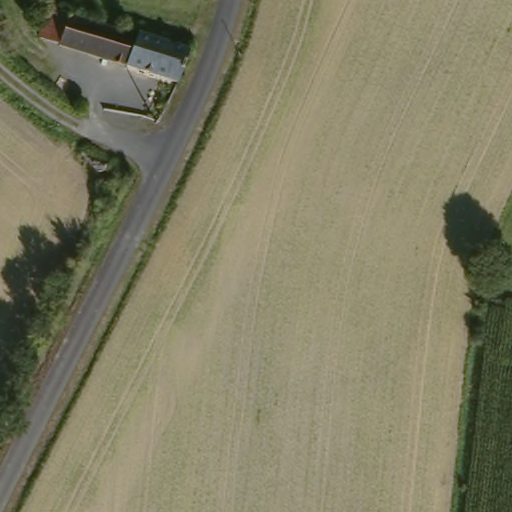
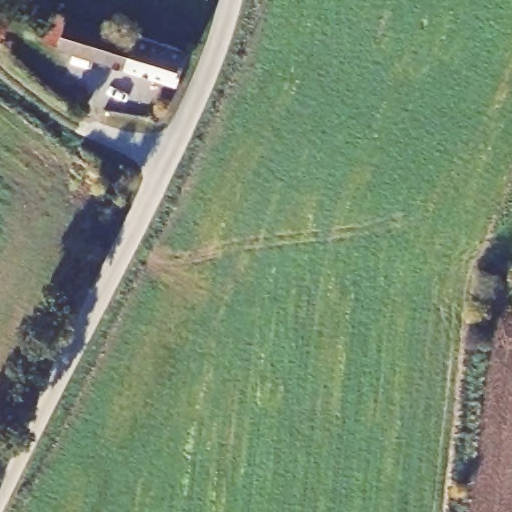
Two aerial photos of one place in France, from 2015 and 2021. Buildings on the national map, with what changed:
unchanged [(60,42),(41,37),(48,12),(68,17),(69,14),(135,35),(137,31),(189,54),(177,82),(60,45),(60,42)]

